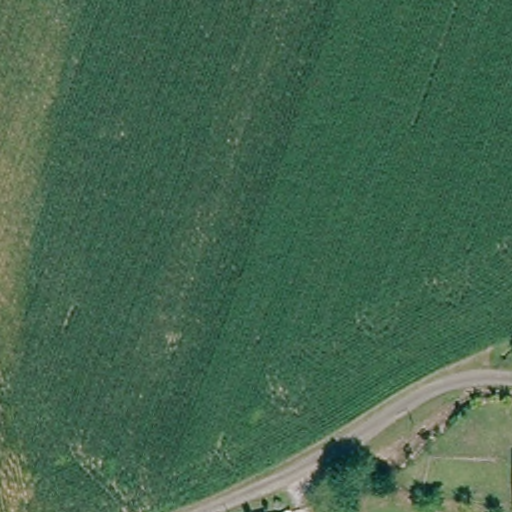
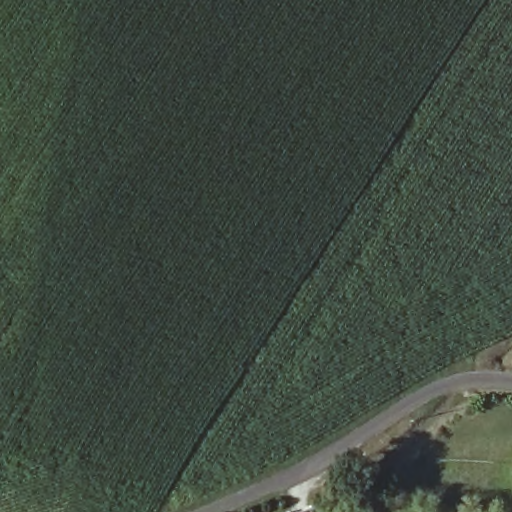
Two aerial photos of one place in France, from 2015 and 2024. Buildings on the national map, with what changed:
[]

